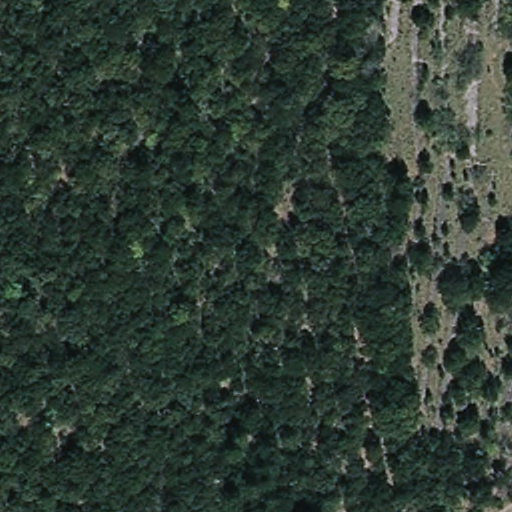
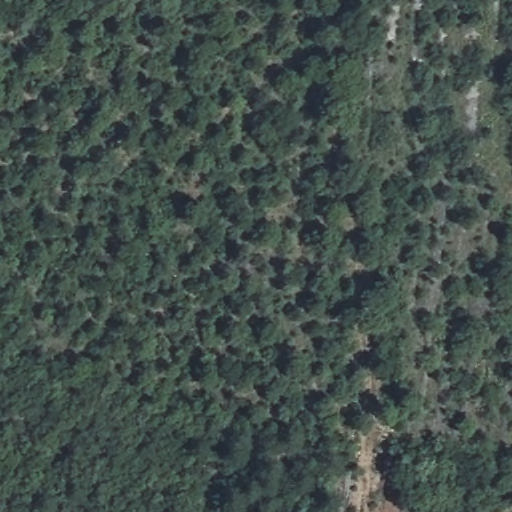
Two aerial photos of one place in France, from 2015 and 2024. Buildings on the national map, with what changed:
[]

